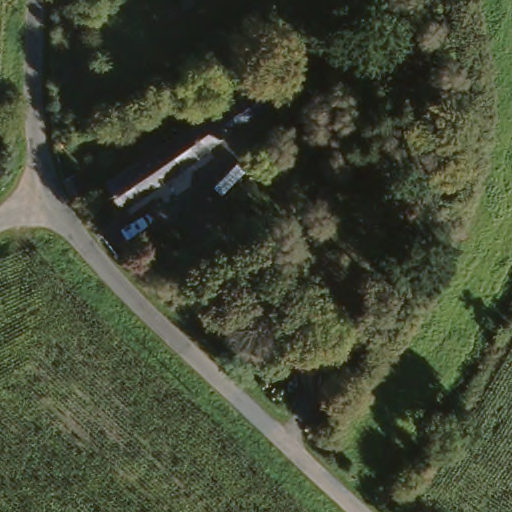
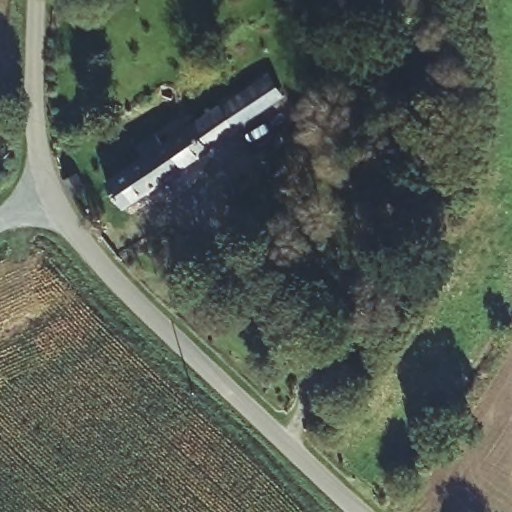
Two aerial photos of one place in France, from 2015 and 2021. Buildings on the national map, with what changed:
unchanged [(211,102),(245,79),(263,102),(229,126),(226,123),(211,102)]
unchanged [(226,123),(198,142),(200,149),(120,207),(101,180),(137,155),(129,142),(148,131),(154,142),(211,102),(226,123)]
unchanged [(65,182),(72,177),(79,190),(69,197),(65,182)]

